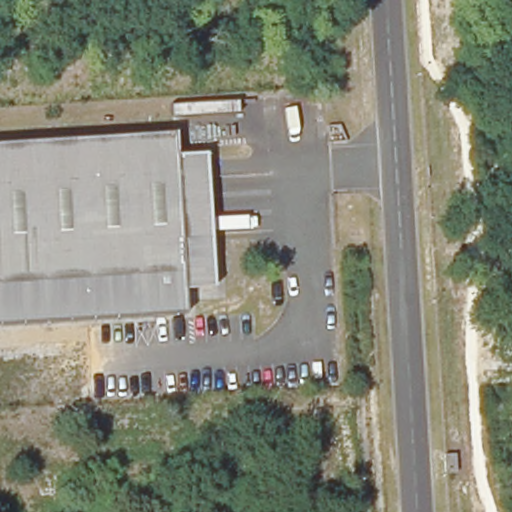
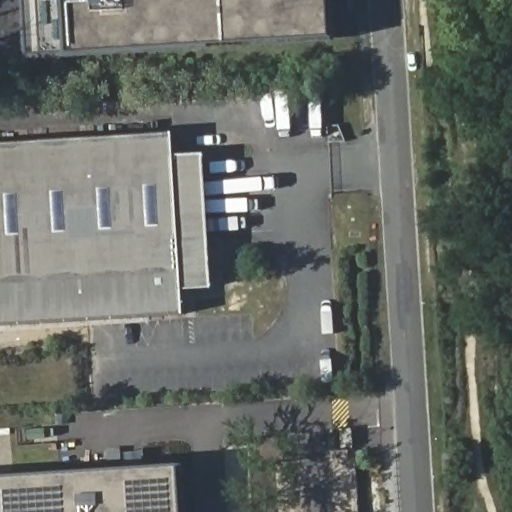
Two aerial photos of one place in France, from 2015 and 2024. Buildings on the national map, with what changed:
new [(29,56),(26,0),(333,0),(335,38),(29,56)]
unchanged [(183,312),(0,323),(0,144),(173,134),(183,312)]
unchanged [(182,290),(174,155),(205,153),(214,287),(182,290)]
new [(180,467),(183,512),(0,512),(0,477),(180,467)]

